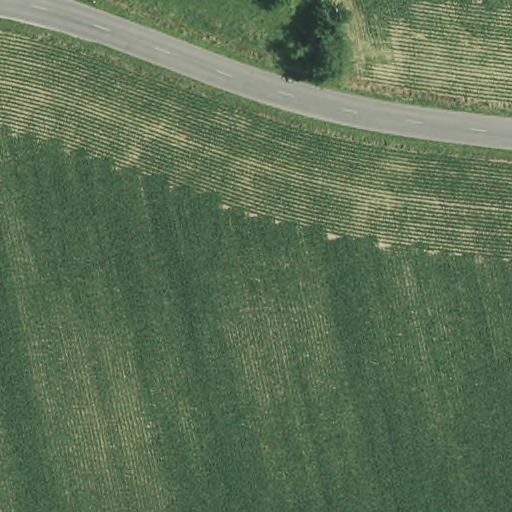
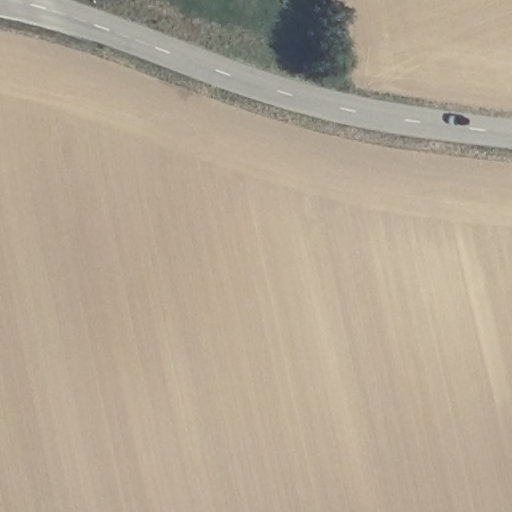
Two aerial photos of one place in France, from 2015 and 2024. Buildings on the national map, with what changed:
[]

